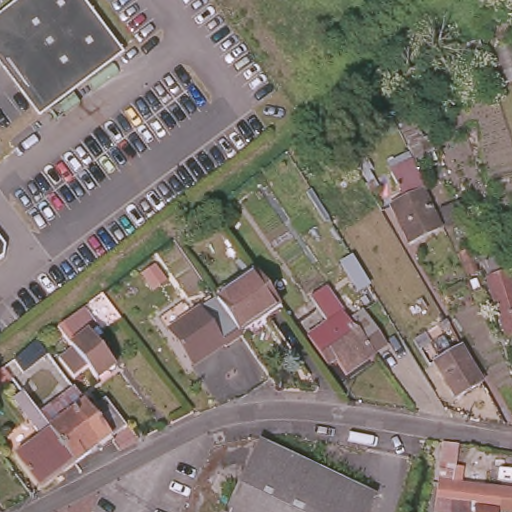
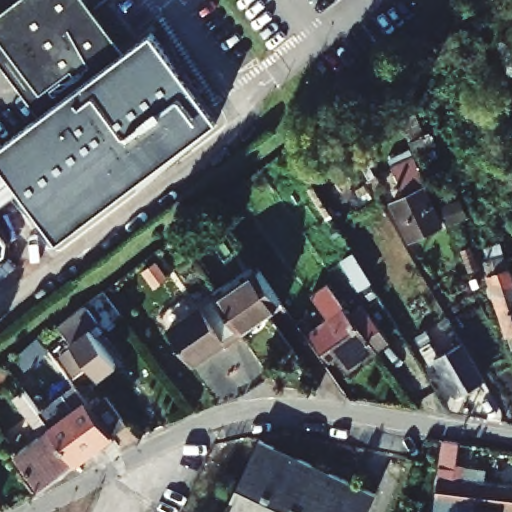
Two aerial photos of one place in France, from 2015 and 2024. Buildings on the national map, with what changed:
unchanged [(114,51),(37,111),(0,63),(0,21),(27,0),(74,0),(114,51)]
new [(114,51),(156,20),(223,107),(48,229),(0,166),(0,137),(37,111),(114,51)]
unchanged [(390,202),(403,197),(392,166),(414,156),(427,186),(446,227),(409,243),(390,202)]
new [(19,190),(0,205),(0,166),(19,190)]
new [(1,221),(0,222),(0,220),(1,221)]
unchanged [(6,244),(5,255),(0,259),(0,236),(6,244)]
unchanged [(284,301),(242,330),(217,292),(259,263),(284,301)]
unchanged [(512,334),(504,336),(487,279),(506,273),(512,294),(512,334)]
unchanged [(322,367),(311,350),(333,335),(307,299),(321,288),(344,323),(357,314),(381,348),(368,358),(341,376),(330,361),(322,367)]
unchanged [(242,330),(226,340),(223,336),(204,348),(190,357),(168,324),(183,314),(217,292),(242,330)]
unchanged [(112,337),(103,344),(125,375),(108,389),(104,383),(99,376),(84,387),(70,367),(84,356),(69,336),(96,316),(112,337)]
demolished [(32,338),(35,335),(43,347),(8,374),(0,380),(0,361),(32,338)]
unchanged [(425,335),(431,345),(427,348),(423,350),(417,341),(421,339),(425,335)]
unchanged [(481,374),(453,390),(432,353),(459,337),(481,374)]
unchanged [(97,456),(93,452),(71,469),(33,419),(69,393),(83,412),(98,401),(121,432),(106,443),(109,447),(97,456)]
unchanged [(71,469),(37,494),(12,460),(35,442),(8,405),(17,398),(33,419),(71,469)]
unchanged [(446,483),(512,492),(512,512),(499,512),(492,511),(492,512),(432,512),(428,511),(437,443),(451,445),(446,483)]
unchanged [(257,446),(268,446),(372,495),(364,512),(220,512),(249,447),(257,446)]
unchanged [(0,500),(0,496),(2,498),(0,500)]

